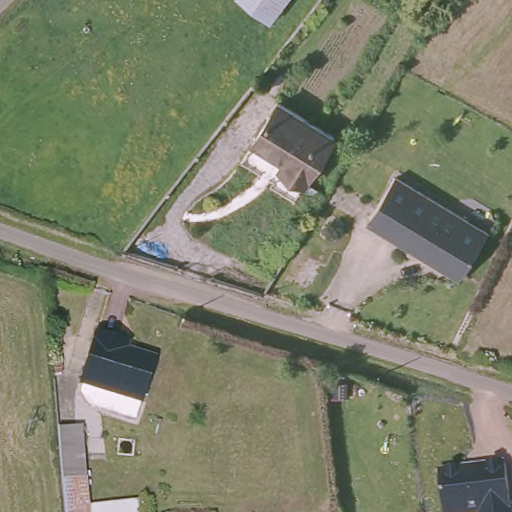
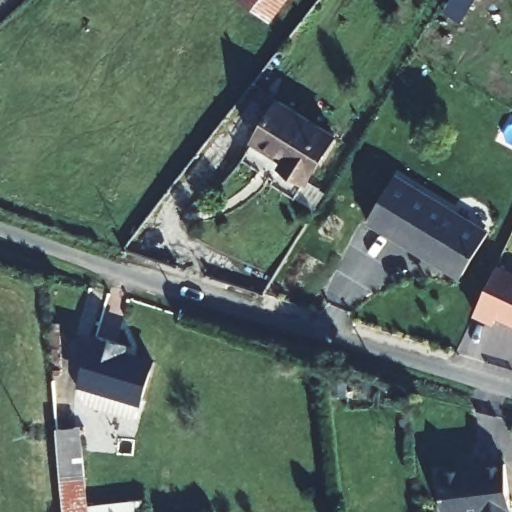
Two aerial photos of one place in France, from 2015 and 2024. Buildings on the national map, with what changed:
unchanged [(233,0),(292,0),(272,28),(233,0)]
unchanged [(281,164),(284,157),(254,137),(280,97),(332,131),(314,161),(335,174),(325,190),(281,164)]
unchanged [(398,172),(490,231),(459,279),(366,223),(398,172)]
new [(512,275),(512,324),(499,318),(496,325),(476,316),(499,268),(512,275)]
unchanged [(144,416),(82,403),(95,338),(128,345),(125,358),(155,364),(144,416)]
unchanged [(56,427),(82,425),(87,509),(144,505),(144,512),(62,512),(56,427)]
unchanged [(438,472),(507,463),(512,505),(512,512),(444,512),(438,472)]

